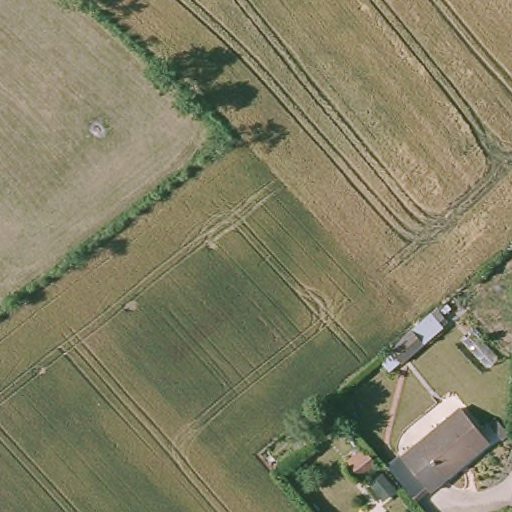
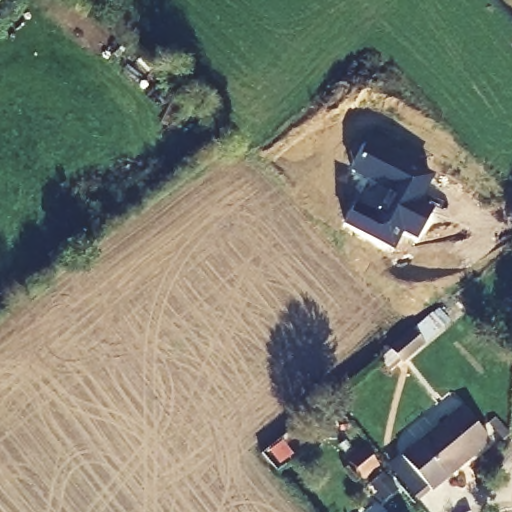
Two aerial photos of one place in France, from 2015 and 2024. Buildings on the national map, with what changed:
new [(357,199),(365,204),(376,184),(351,170),(366,142),(432,176),(419,203),(432,211),(415,242),(401,235),(392,252),(343,226),(357,199)]
unchanged [(397,356),(388,347),(414,326),(432,311),(441,322),(424,336),(397,357),(397,356)]
unchanged [(489,441),(442,481),(427,493),(417,481),(399,458),(459,407),(489,441)]

